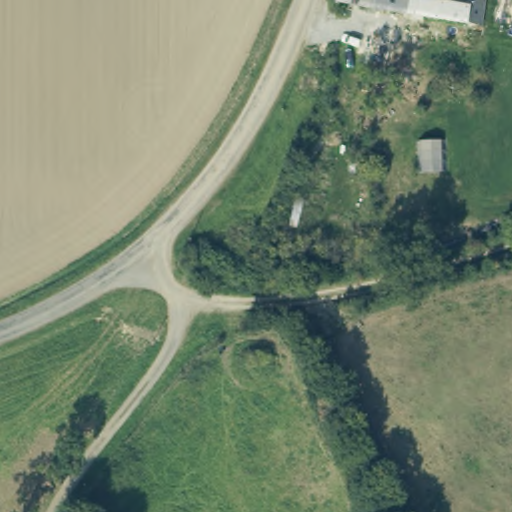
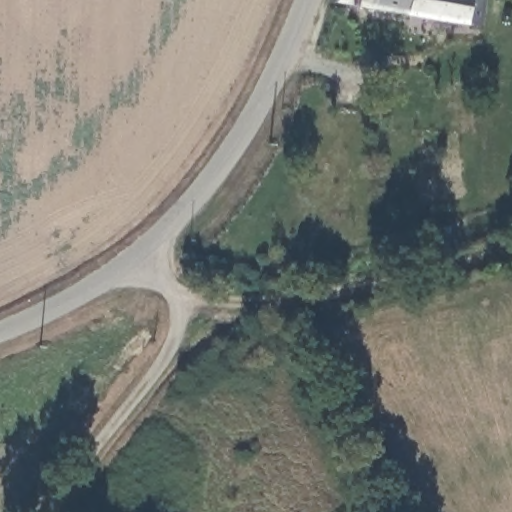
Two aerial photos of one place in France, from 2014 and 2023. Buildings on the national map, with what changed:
unchanged [(339,4),(340,0),(486,0),(484,23),(339,4)]

